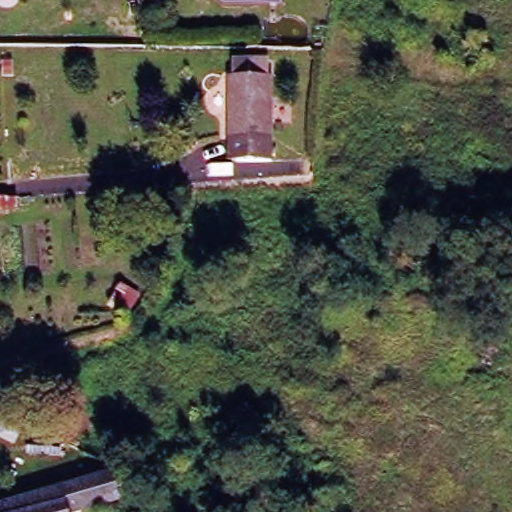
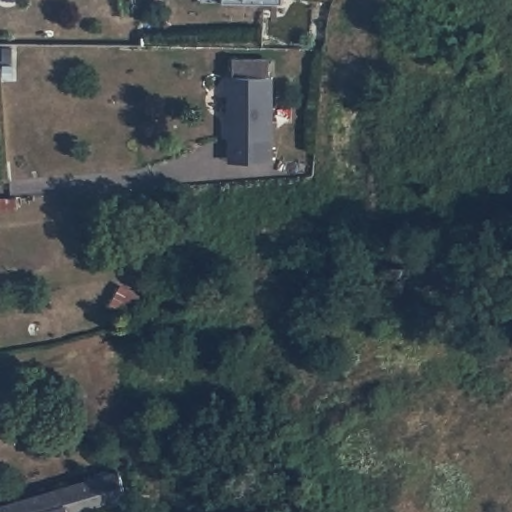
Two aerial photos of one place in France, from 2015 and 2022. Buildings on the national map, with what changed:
unchanged [(235,157),(225,157),(226,148),(227,133),(230,70),(231,57),(275,58),(275,71),(272,135),(271,157),(235,157)]
unchanged [(0,199),(12,198),(13,209),(0,210),(0,199)]
unchanged [(43,441),(42,455),(22,453),(23,439),(43,441)]
unchanged [(47,490),(88,479),(114,471),(122,499),(110,503),(81,512),(0,512),(0,505),(22,498),(47,490)]

